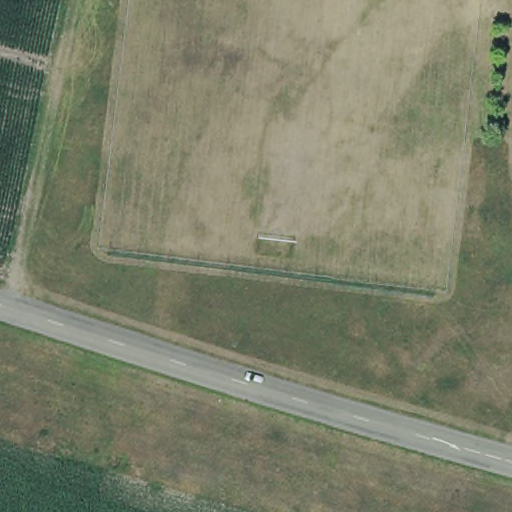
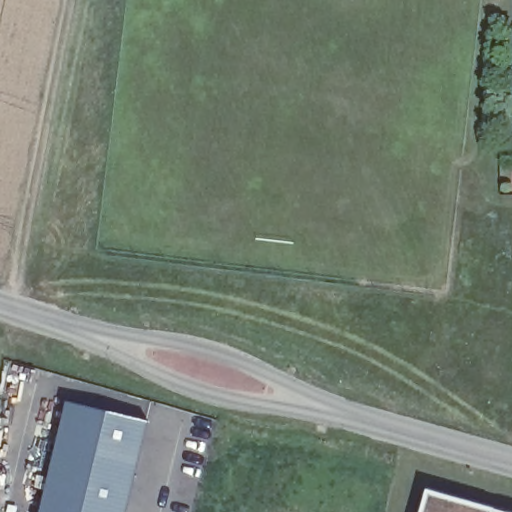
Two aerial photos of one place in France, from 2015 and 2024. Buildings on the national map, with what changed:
new [(41,512),(67,401),(148,420),(127,512),(41,512)]
new [(509,512),(421,512),(427,489),(509,512)]

